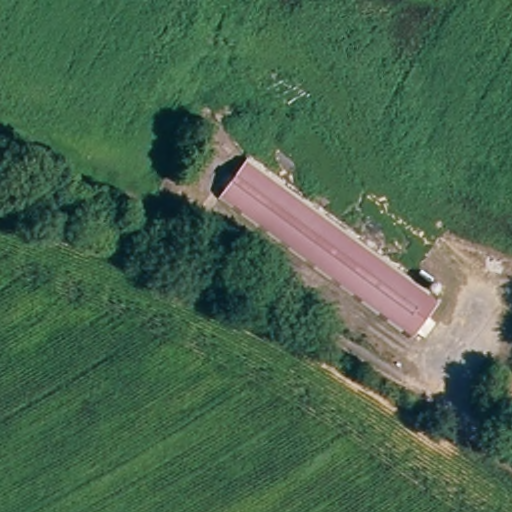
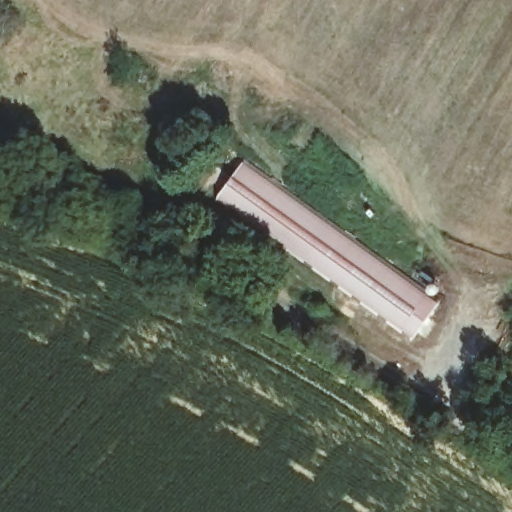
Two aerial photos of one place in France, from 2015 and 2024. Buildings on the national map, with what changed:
unchanged [(247,164),(443,302),(413,343),(216,205),(247,164)]

